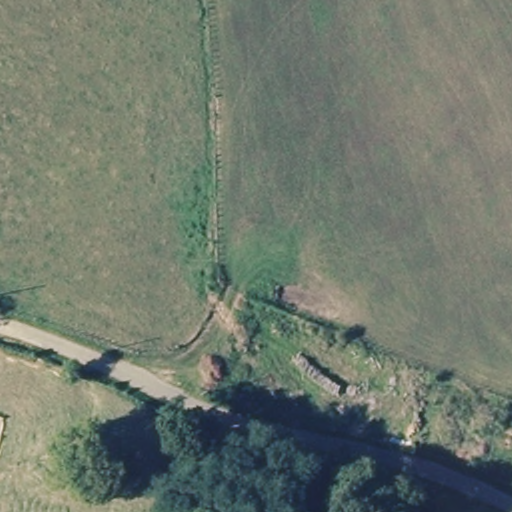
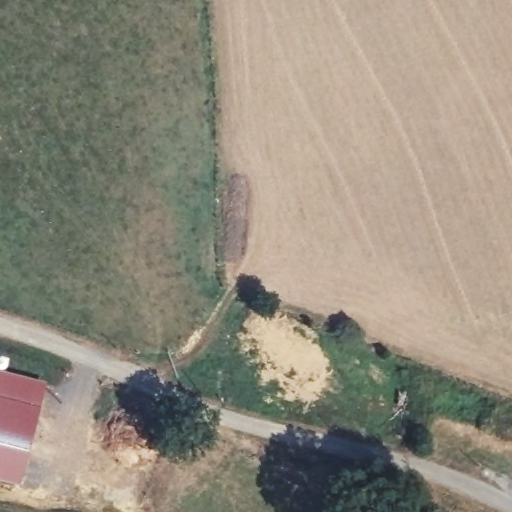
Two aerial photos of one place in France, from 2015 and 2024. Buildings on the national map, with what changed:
new [(20,485),(0,481),(0,370),(45,382),(20,485)]

